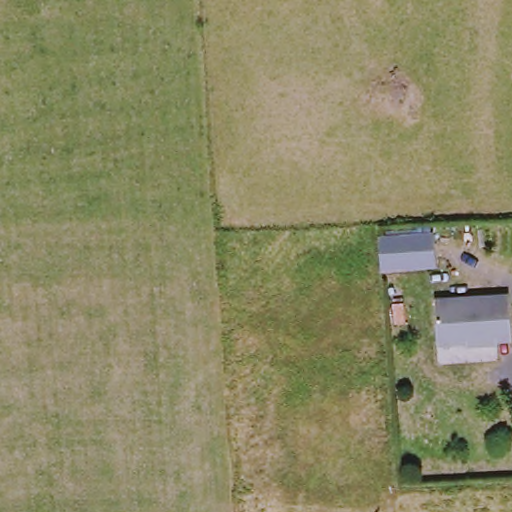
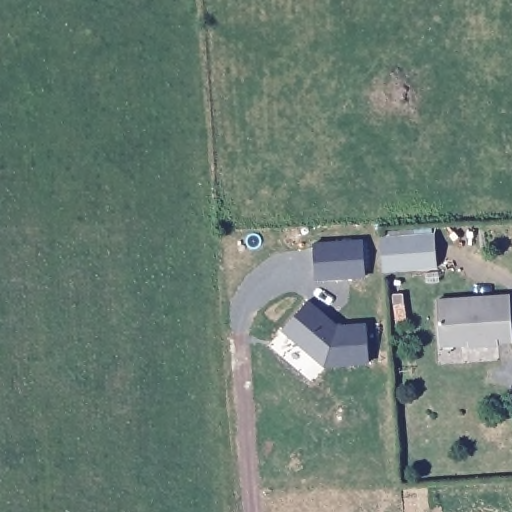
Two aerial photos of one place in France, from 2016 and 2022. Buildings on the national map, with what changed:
unchanged [(384,238),(439,235),(441,267),(386,270),(384,238)]
new [(364,242),(366,277),(316,280),(314,246),(364,242)]
unchanged [(439,302),(512,296),(512,340),(501,341),(501,343),(472,346),(472,343),(442,345),(442,339),(439,302)]
new [(311,301),(341,327),(371,325),(374,362),(329,366),(287,329),(311,301)]

